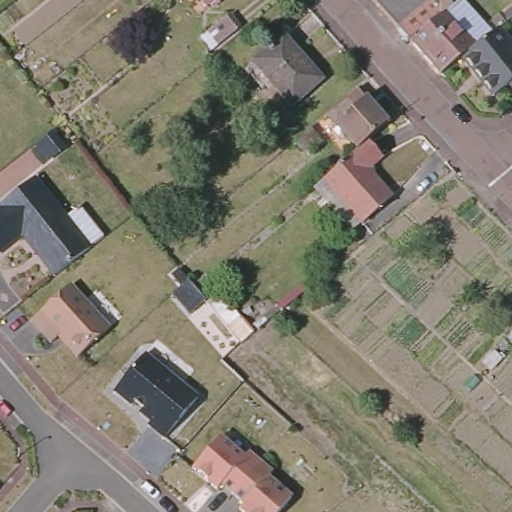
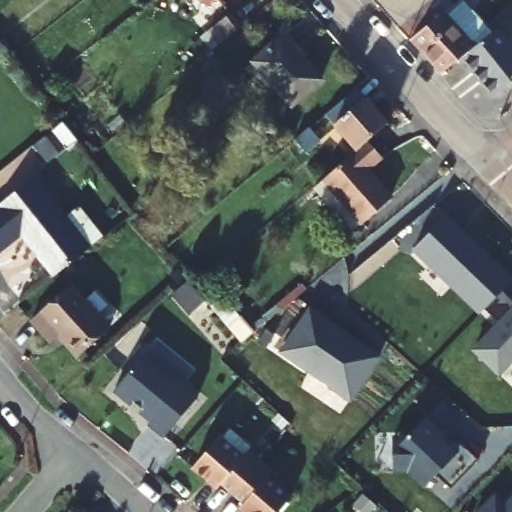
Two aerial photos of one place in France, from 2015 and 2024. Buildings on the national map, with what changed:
unchanged [(200,0),(205,0),(202,3),(200,0)]
unchanged [(392,21),(391,20),(374,0),(448,0),(440,8),(471,41),(458,51),(436,69),(406,36),(392,21)]
unchanged [(235,29),(212,48),(202,37),(225,18),(235,29)]
unchanged [(506,78),(490,91),(458,51),(471,41),(495,21),(512,42),(512,85),(506,78)]
unchanged [(286,104),(249,61),(278,36),(293,54),(294,53),(316,79),(286,104)]
unchanged [(356,153),(326,118),(357,93),(387,126),(366,145),(356,153)]
unchanged [(320,136),(308,145),(300,135),(311,126),(320,136)]
unchanged [(315,188),(323,181),(356,153),(366,145),(381,162),(368,173),(391,201),(361,226),(352,234),(315,188)]
unchanged [(0,248),(0,201),(32,175),(88,245),(53,274),(20,232),(0,248)]
new [(512,279),(512,281),(503,290),(512,299),(512,363),(500,377),(470,349),(498,319),(486,309),(481,314),(411,251),(448,215),(512,279)]
unchanged [(109,326),(77,355),(57,334),(50,341),(30,318),(70,283),(109,326)]
new [(380,356),(351,401),(278,351),(310,306),(380,356)]
unchanged [(145,352),(197,396),(164,436),(147,422),(150,419),(140,410),(142,406),(135,400),(131,403),(114,389),(145,352)]
new [(450,436),(453,433),(478,459),(452,486),(437,473),(423,489),(407,473),(394,473),(391,452),(428,417),(450,436)]
unchanged [(219,434),(243,454),(247,449),(271,470),(267,475),(291,495),(276,512),(246,512),(239,506),(243,501),(220,481),(216,486),(192,465),(219,434)]
new [(506,501),(512,494),(512,512),(478,512),(496,493),(506,501)]

